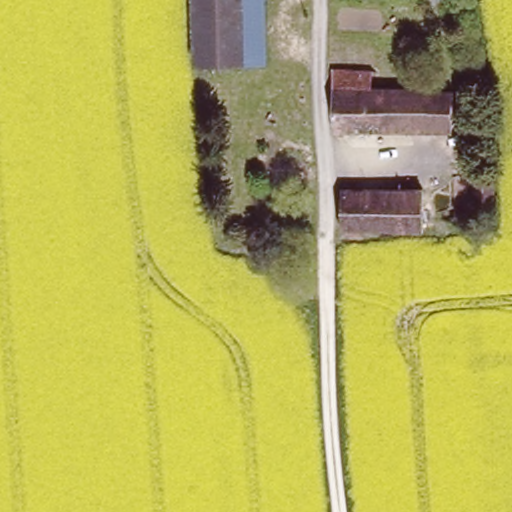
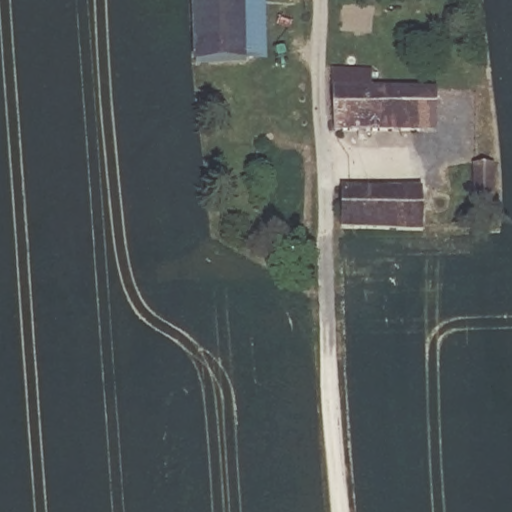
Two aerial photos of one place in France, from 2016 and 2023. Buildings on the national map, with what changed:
unchanged [(247,65),(199,67),(196,0),(264,0),(267,64),(247,65)]
unchanged [(332,71),(370,71),(371,85),(389,84),(390,72),(450,74),(452,134),(332,132),(332,71)]
unchanged [(471,165),(493,165),(494,199),(472,199),(471,165)]
unchanged [(432,191),(432,229),(339,228),(339,190),(432,191)]

